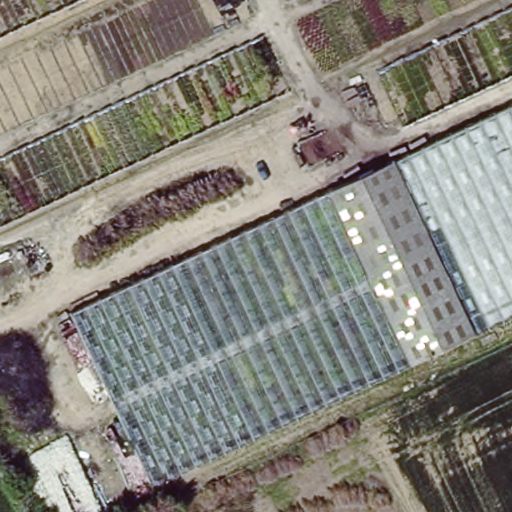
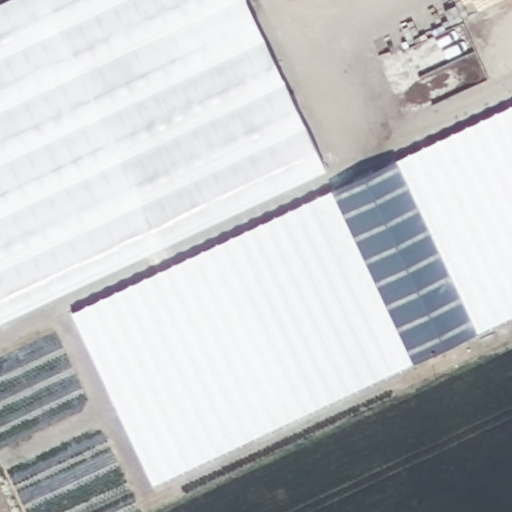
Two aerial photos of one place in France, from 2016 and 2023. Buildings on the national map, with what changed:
new [(0,321),(0,0),(243,0),(322,168),(0,321)]
unchanged [(330,187),(397,159),(512,104),(512,313),(479,328),(407,362),(150,483),(72,307),(330,187)]

